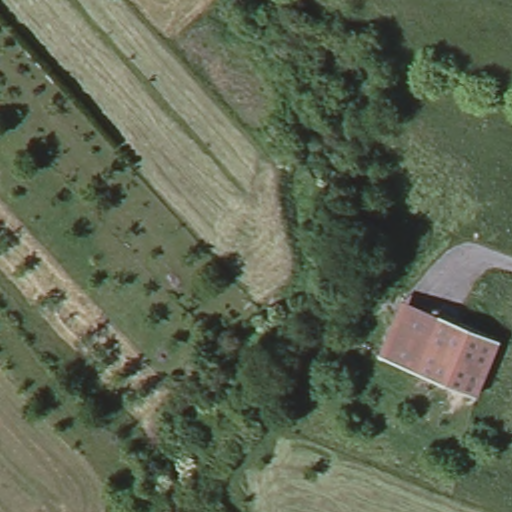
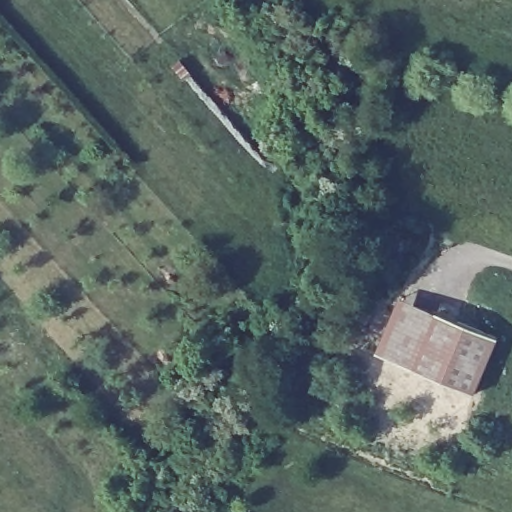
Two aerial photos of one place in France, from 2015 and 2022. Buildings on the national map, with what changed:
unchanged [(495,337),(472,392),(381,354),(404,298),(495,337)]

